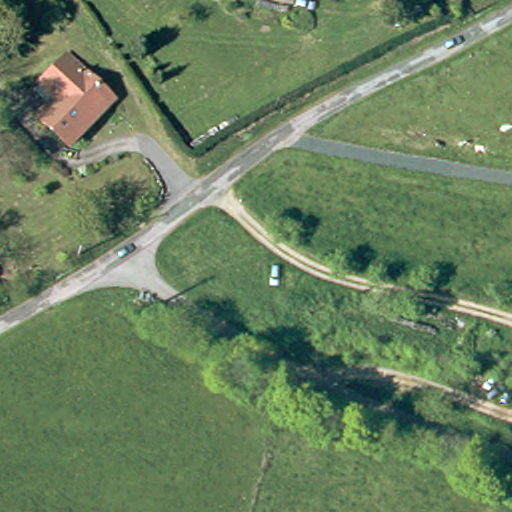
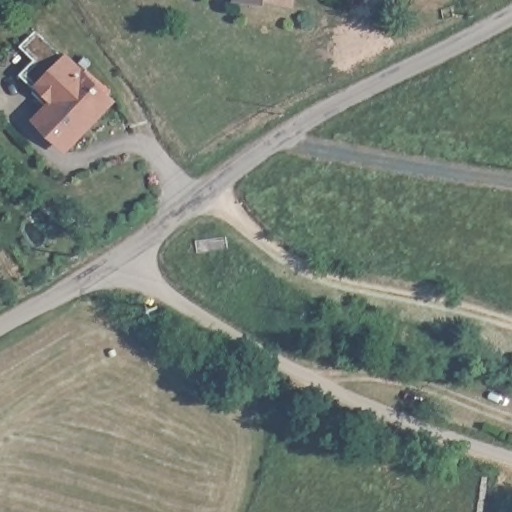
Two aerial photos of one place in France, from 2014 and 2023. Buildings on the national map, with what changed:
unchanged [(72,156),(44,126),(60,110),(44,92),(65,71),(112,118),(72,156)]

